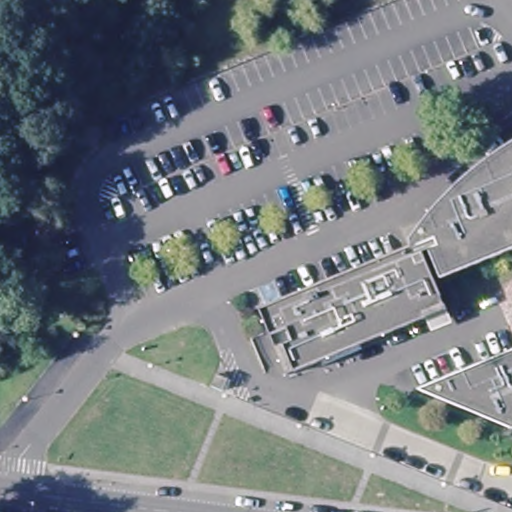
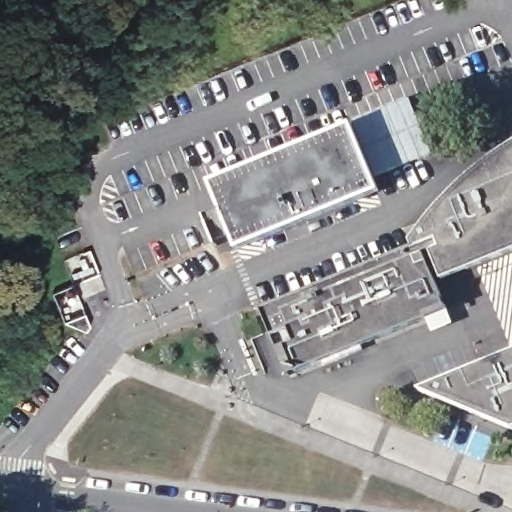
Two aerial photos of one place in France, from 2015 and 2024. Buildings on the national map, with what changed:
new [(213,181),(356,122),(383,189),(240,247),(236,237),(220,243),(207,214),(225,207),(213,181)]
unchanged [(446,281),(433,254),(420,259),(443,315),(386,337),(290,377),(263,310),(415,247),(412,237),(422,226),(438,206),(454,187),(475,171),(500,151),(512,143),(512,253),(446,281)]
unchanged [(420,392),(512,354),(512,432),(420,392)]

